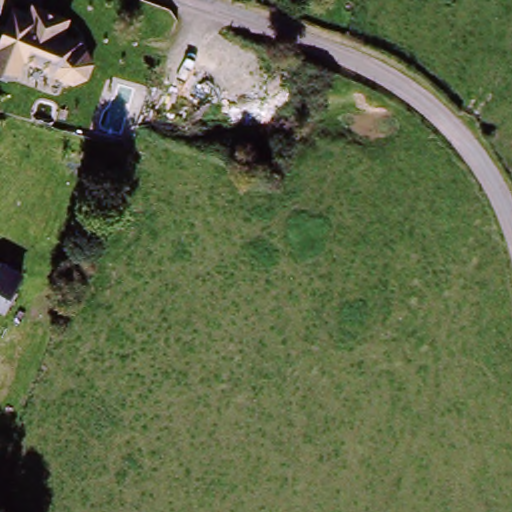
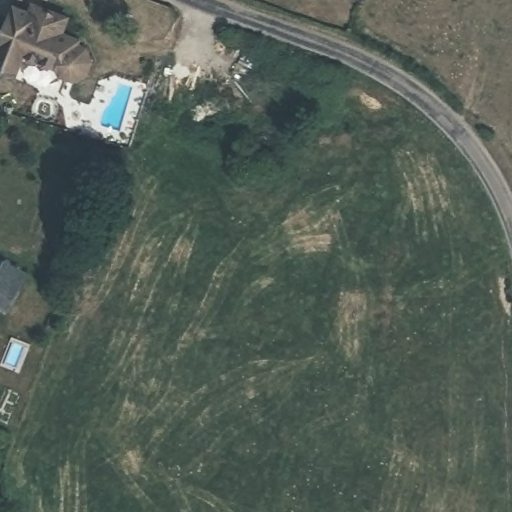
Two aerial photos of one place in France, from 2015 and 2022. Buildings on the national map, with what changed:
unchanged [(15,12),(39,20),(42,12),(70,21),(64,37),(82,44),(80,48),(61,73),(26,61),(21,76),(0,69),(0,56),(15,12)]
unchanged [(0,309),(0,277),(12,283),(18,275),(23,277),(6,312),(0,309)]

